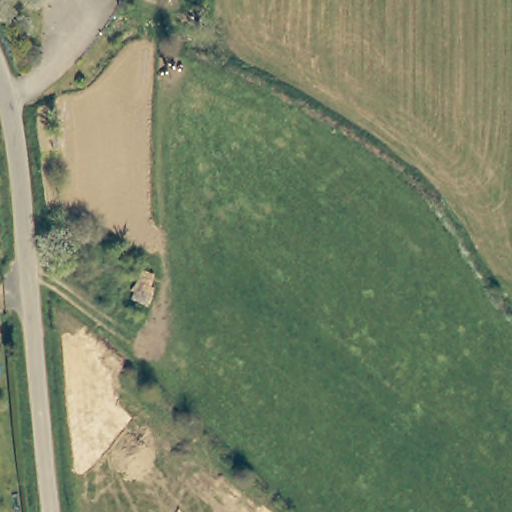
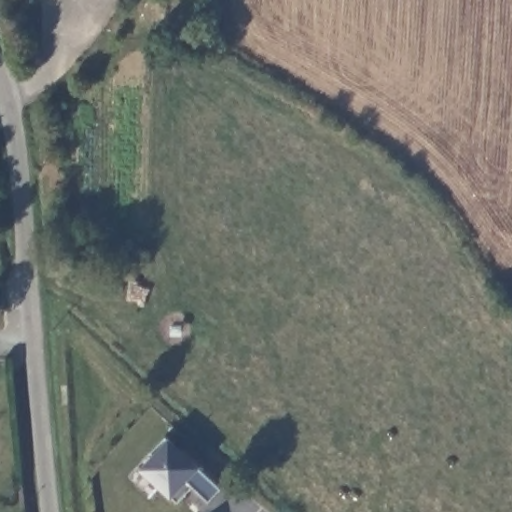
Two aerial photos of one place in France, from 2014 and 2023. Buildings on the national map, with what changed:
new [(209,501),(192,487),(177,502),(171,499),(140,470),(156,454),(153,452),(165,440),(167,442),(170,440),(200,468),(221,489),(209,501)]

